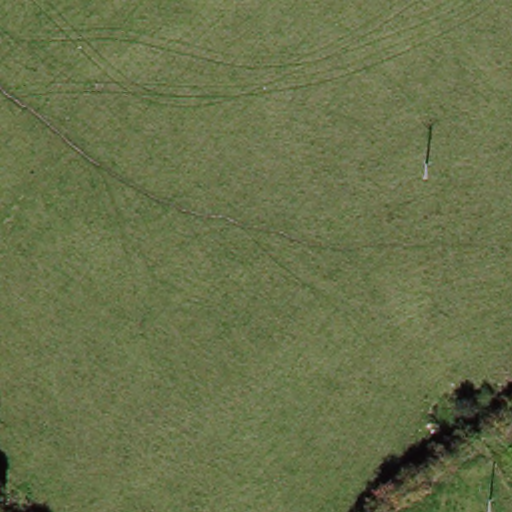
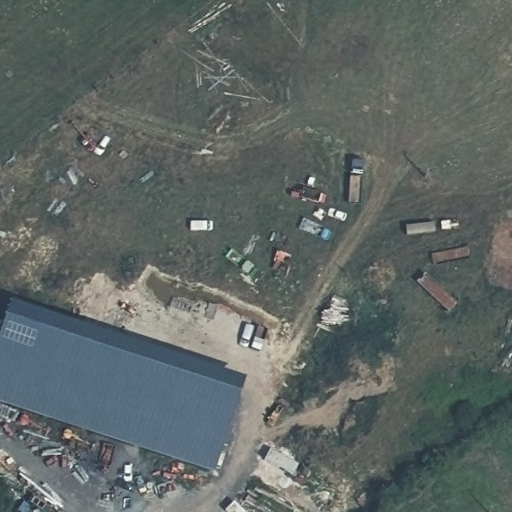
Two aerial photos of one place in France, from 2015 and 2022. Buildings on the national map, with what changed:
new [(246,380),(215,475),(0,405),(0,335),(12,303),(246,380)]

